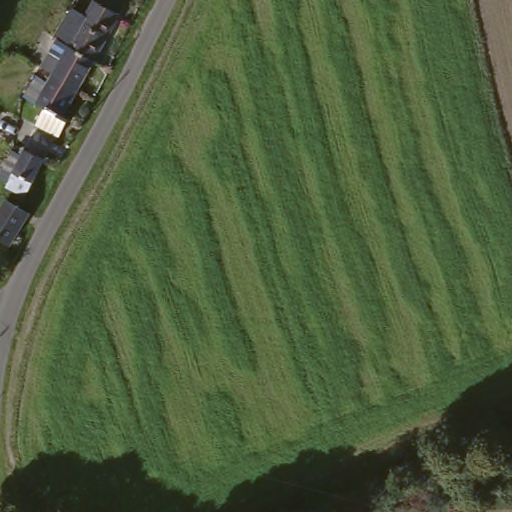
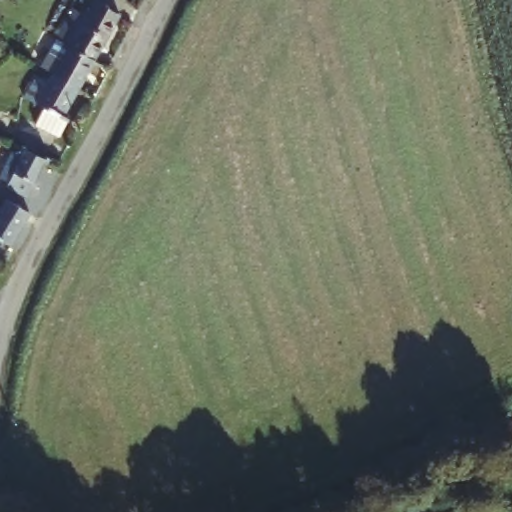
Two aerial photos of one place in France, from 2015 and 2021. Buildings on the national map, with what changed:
unchanged [(98,64),(76,52),(77,52),(65,47),(81,15),(93,22),(101,7),(123,19),(98,64)]
unchanged [(55,142),(32,131),(44,110),(41,108),(31,103),(44,80),(54,86),(59,76),(51,72),(50,72),(64,48),(76,54),(76,52),(98,64),(91,75),(84,89),(69,115),(66,121),(55,142)]
unchanged [(18,157),(37,167),(24,190),(4,180),(18,157)]
unchanged [(0,242),(0,206),(3,201),(30,217),(13,250),(0,242)]

